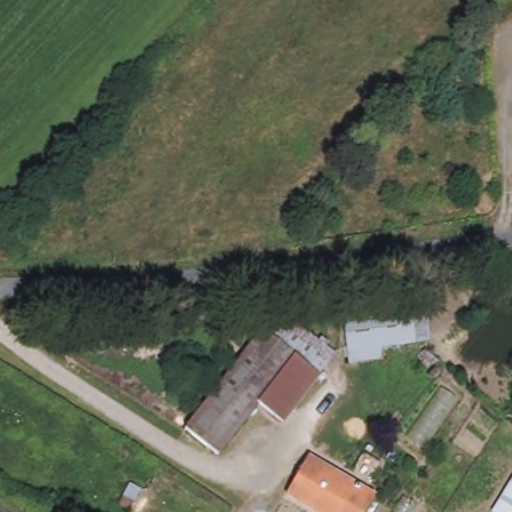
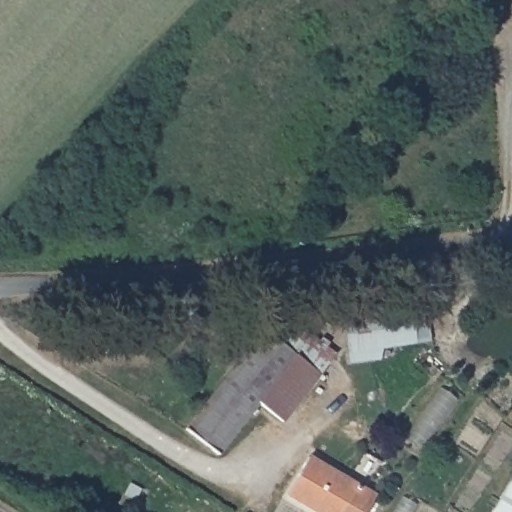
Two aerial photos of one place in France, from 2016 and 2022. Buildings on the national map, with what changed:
unchanged [(409,310),(414,345),(346,354),(341,319),(409,310)]
unchanged [(319,376),(281,425),(255,404),(215,455),(184,430),(261,330),(319,376)]
unchanged [(364,512),(313,512),(284,495),(305,458),(372,497),(364,512)]

